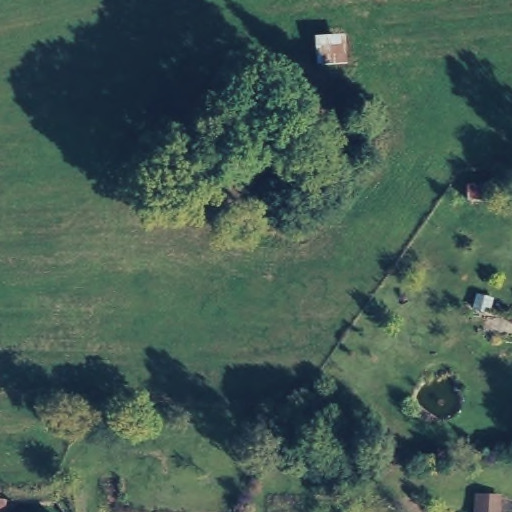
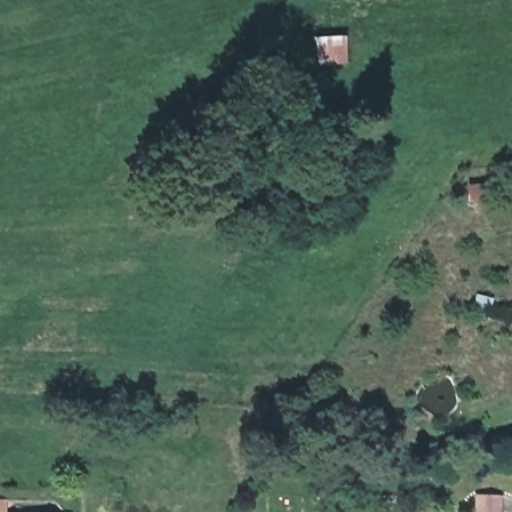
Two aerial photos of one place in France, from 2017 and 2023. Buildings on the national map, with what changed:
unchanged [(348,30),(350,62),(317,63),(316,32),(348,30)]
unchanged [(0,512),(0,491),(8,491),(8,512),(0,512)]

